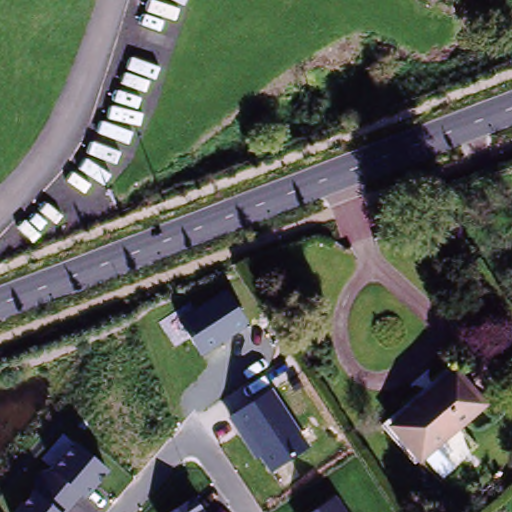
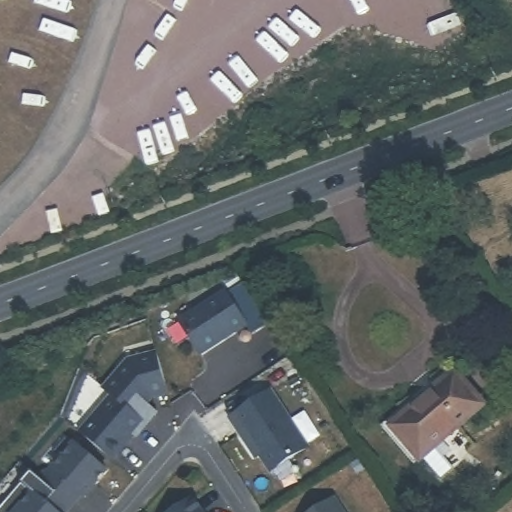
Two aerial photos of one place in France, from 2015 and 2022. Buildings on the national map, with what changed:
unchanged [(228,293),(249,327),(199,355),(179,320),(228,293)]
new [(131,359),(159,351),(171,392),(155,397),(150,402),(160,411),(149,423),(114,395),(114,394),(106,387),(131,359)]
unchanged [(441,480),(422,458),(419,460),(391,427),(451,373),(479,407),(444,438),(451,447),(442,456),(454,469),(441,480)]
unchanged [(309,449),(269,475),(259,458),(254,461),(228,420),(272,390),(309,449)]
new [(114,394),(114,395),(149,423),(139,436),(136,434),(115,459),(83,431),(114,394)]
unchanged [(75,445),(106,472),(72,512),(19,512),(75,445)]
unchanged [(195,498),(204,512),(173,512),(195,498)]
unchanged [(343,512),(315,512),(334,500),(343,512)]

